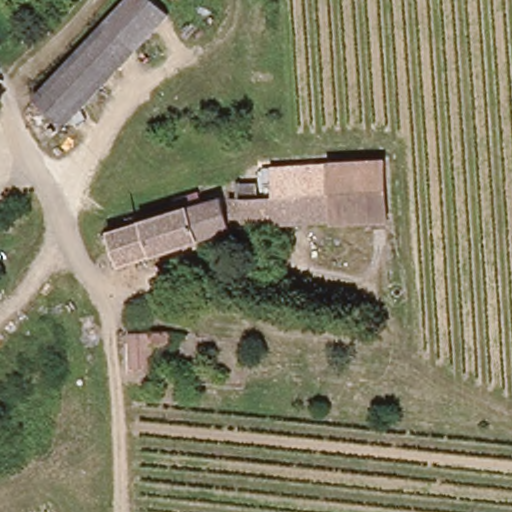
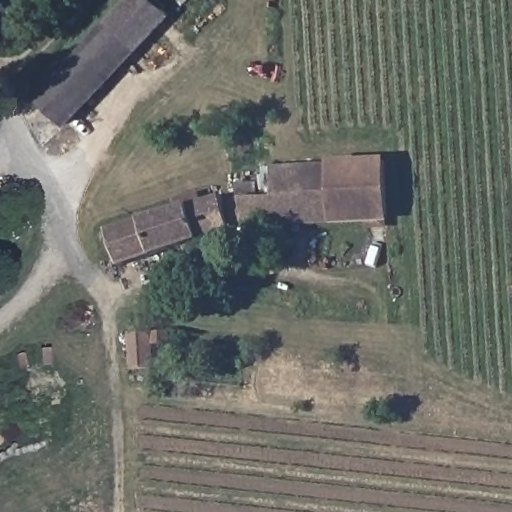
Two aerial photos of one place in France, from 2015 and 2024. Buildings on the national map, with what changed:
unchanged [(128,0),(156,0),(170,15),(66,124),(38,95),(128,0)]
unchanged [(245,227),(232,228),(232,214),(232,197),(258,197),(258,164),(263,164),(270,164),(305,163),(311,163),(375,162),(386,162),(387,222),(387,234),(379,234),(369,234),(369,223),(245,227)]
unchanged [(231,231),(120,267),(110,232),(181,210),(175,200),(199,192),(202,203),(222,197),(231,231)]
unchanged [(120,368),(120,330),(159,328),(160,367),(120,368)]

